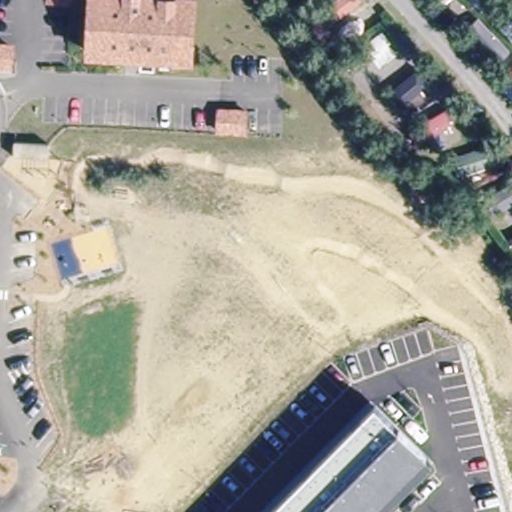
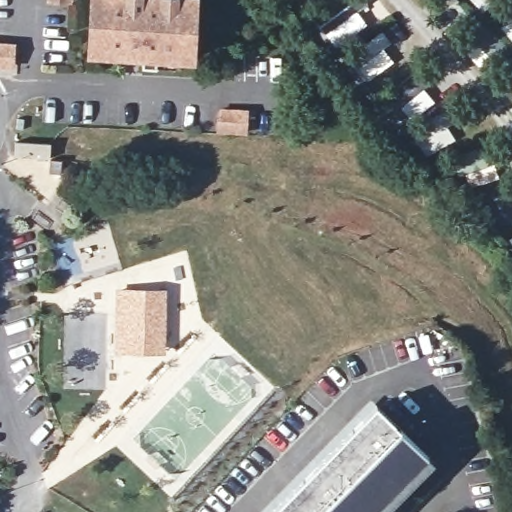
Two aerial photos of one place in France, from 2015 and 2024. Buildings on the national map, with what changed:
unchanged [(190,57),(158,56),(158,66),(145,65),(145,55),(95,54),(96,0),(192,0),(190,57)]
unchanged [(12,56),(0,55),(0,35),(14,36),(12,56)]
unchanged [(60,146),(59,161),(24,158),(25,144),(60,146)]
new [(115,287),(167,287),(166,352),(114,352),(115,287)]
unchanged [(373,512),(270,512),(373,404),(428,456),(373,512)]

